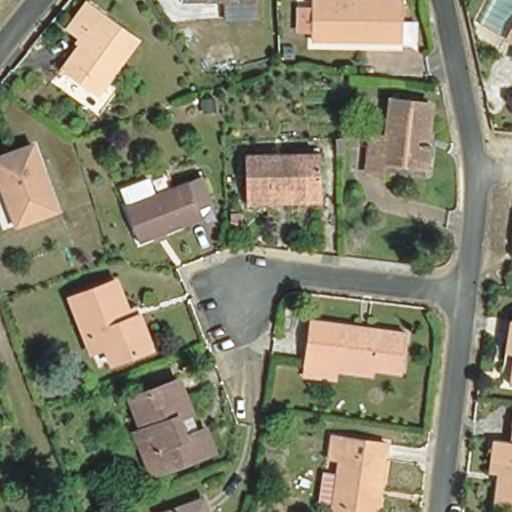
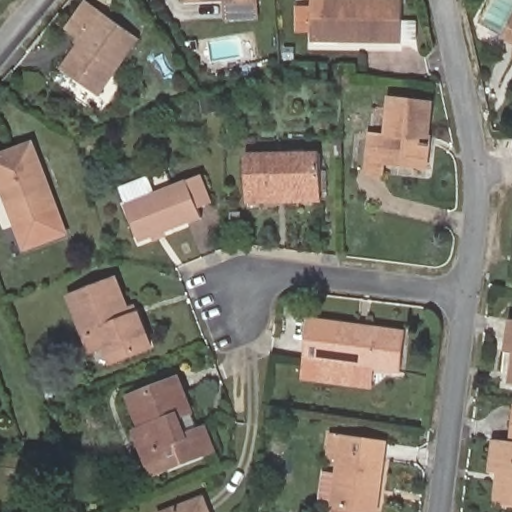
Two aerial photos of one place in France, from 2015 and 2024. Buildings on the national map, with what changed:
unchanged [(251,22),(221,23),(220,2),(181,5),(181,0),(251,0),(251,22)]
unchanged [(135,37),(95,97),(59,73),(78,42),(64,32),(82,3),(135,37)]
unchanged [(401,6),(401,46),(311,47),(311,6),(401,6)]
unchanged [(512,21),(512,37),(505,34),(512,21)]
unchanged [(426,110),(420,172),(382,169),(380,180),(363,179),(367,142),(381,144),(385,105),(426,110)]
unchanged [(24,155),(50,219),(10,235),(0,211),(0,164),(24,155)]
unchanged [(256,207),(238,206),(241,160),(315,164),(312,204),(311,211),(256,207)]
unchanged [(133,245),(118,208),(180,183),(191,179),(202,205),(190,210),(195,220),(133,245)]
unchanged [(72,341),(56,302),(102,283),(115,314),(123,311),(126,318),(139,349),(100,366),(92,351),(79,356),(72,341)]
unchanged [(330,367),(329,375),(310,373),(300,372),(306,317),(400,327),(396,366),(366,362),(365,371),(330,367)]
unchanged [(506,362),(496,360),(500,328),(510,330),(512,330),(512,396),(501,395),(506,362)]
unchanged [(124,440),(131,437),(119,405),(167,386),(174,402),(180,420),(172,422),(180,442),(195,436),(202,457),(149,480),(141,482),(124,440)]
unchanged [(480,482),(484,448),(493,449),(503,450),(506,432),(509,415),(512,415),(512,512),(486,512),(490,482),(480,482)]
unchanged [(332,507),(317,505),(321,475),(335,477),(337,461),(325,458),(328,437),(340,438),(382,444),(373,512),(332,512),(332,508),(332,507)]
unchanged [(199,512),(192,512),(198,510),(199,512)]

